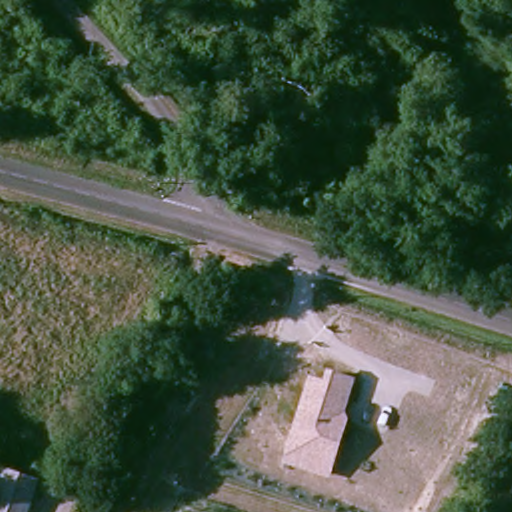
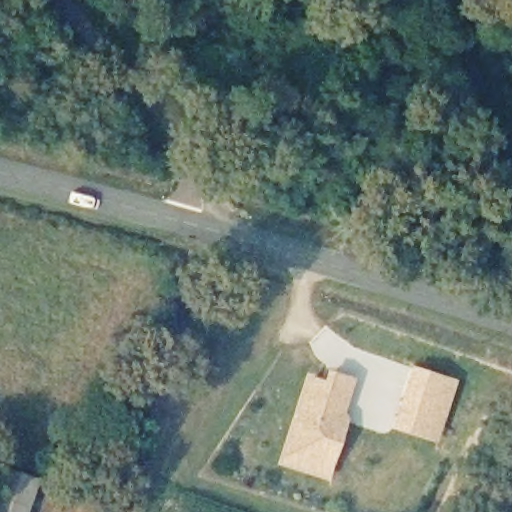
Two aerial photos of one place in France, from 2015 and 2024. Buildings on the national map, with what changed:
new [(457,383),(438,442),(392,429),(410,367),(457,383)]
unchanged [(345,411),(350,418),(328,477),(281,462),(310,377),(323,380),(327,369),(355,378),(345,411)]
unchanged [(19,512),(0,512),(0,466),(30,478),(19,512)]

